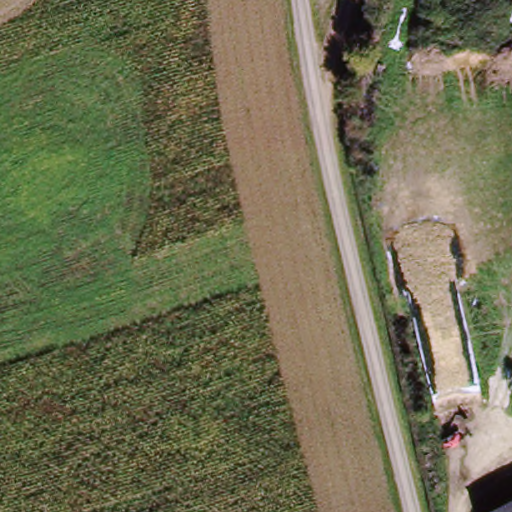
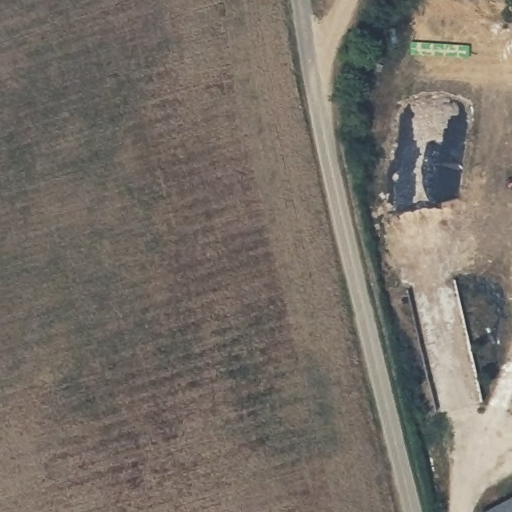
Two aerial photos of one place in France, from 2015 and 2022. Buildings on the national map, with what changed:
unchanged [(512,512),(473,512),(512,494),(512,512)]

